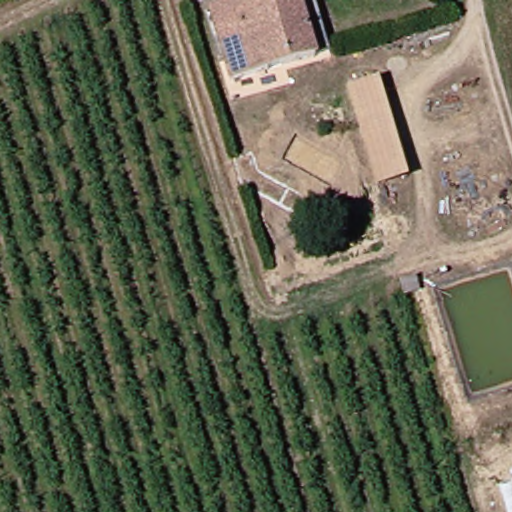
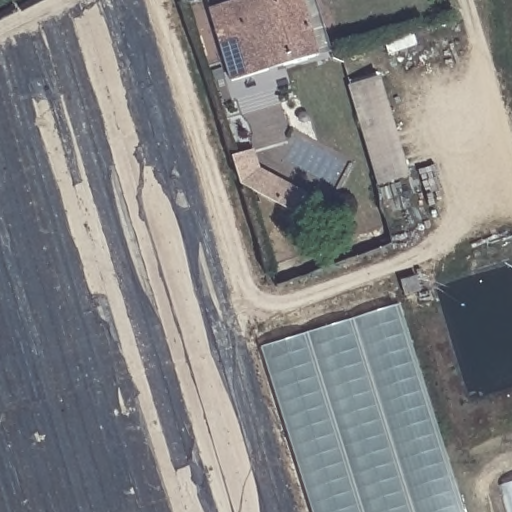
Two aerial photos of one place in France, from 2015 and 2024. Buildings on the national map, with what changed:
unchanged [(184,0),(188,0),(184,1),(184,0)]
unchanged [(209,1),(216,0),(294,0),(306,57),(226,77),(209,1)]
unchanged [(311,0),(324,53),(306,57),(294,0),(311,0)]
unchanged [(375,175),(353,78),(383,71),(406,169),(375,175)]
unchanged [(254,150),(259,169),(308,195),(298,215),(239,185),(231,156),(254,150)]
new [(260,348),(398,305),(462,512),(311,512),(260,348)]
new [(512,485),(512,512),(506,512),(500,488),(512,485)]

